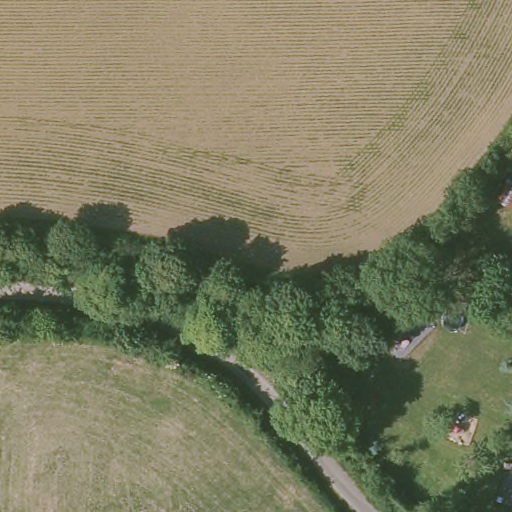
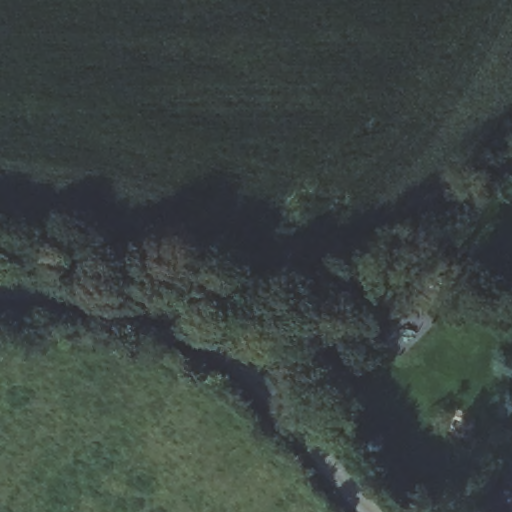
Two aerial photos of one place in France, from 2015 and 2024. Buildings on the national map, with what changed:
unchanged [(512,199),(510,204),(495,195),(507,173),(512,176),(512,199)]

